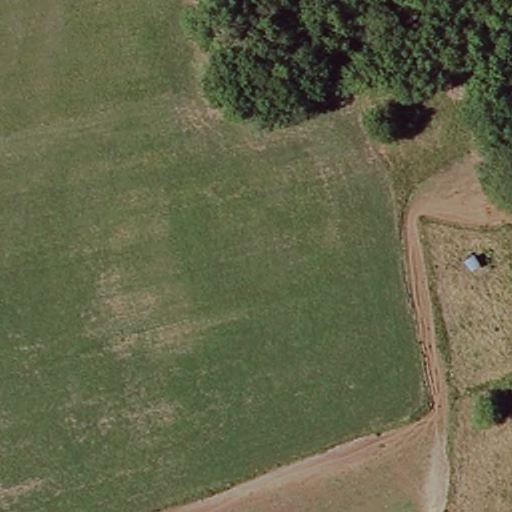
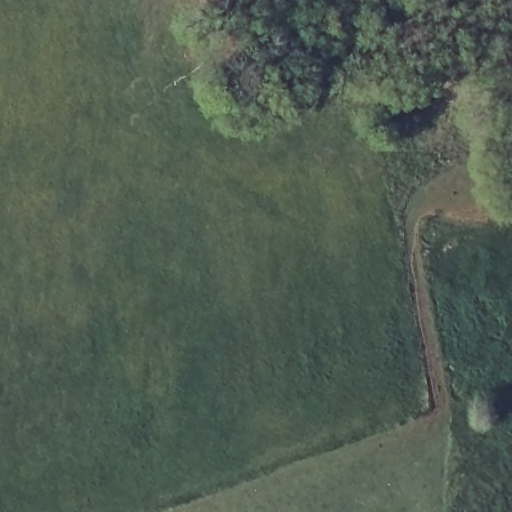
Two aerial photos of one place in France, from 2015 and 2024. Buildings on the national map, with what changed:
[]

